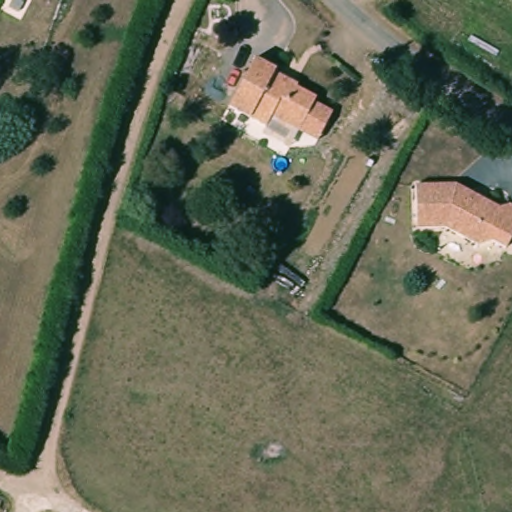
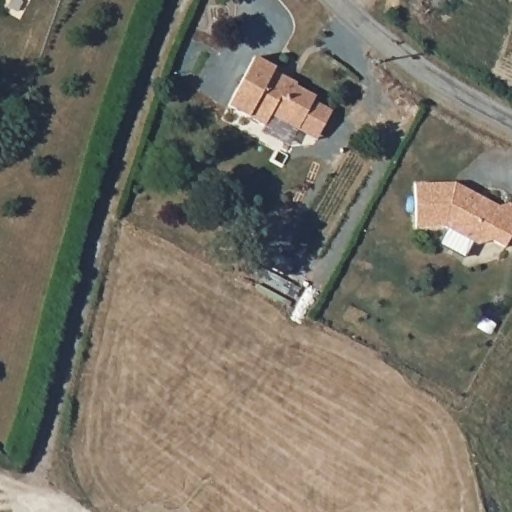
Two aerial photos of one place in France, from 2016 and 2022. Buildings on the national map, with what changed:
unchanged [(279,73),(277,76),(318,100),(302,130),(277,116),(268,129),(234,107),(260,61),(279,73)]
unchanged [(506,206),(507,200),(512,202),(512,242),(510,245),(497,239),(473,241),(447,226),(421,228),(416,184),(456,182),(506,206)]

